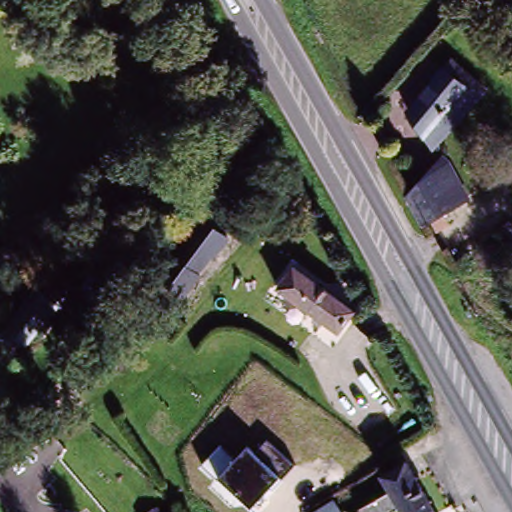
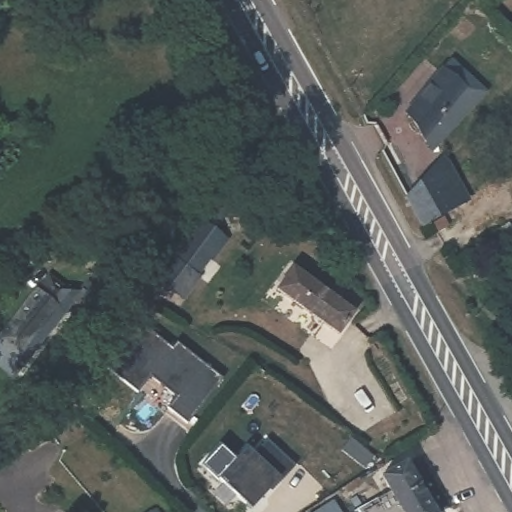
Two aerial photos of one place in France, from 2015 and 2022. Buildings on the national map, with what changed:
unchanged [(458,85),(463,78),(482,97),(432,150),(408,116),(451,67),(457,73),(452,78),(458,85)]
unchanged [(431,219),(414,191),(448,157),(473,194),(458,202),(466,214),(445,226),(438,215),(431,219)]
unchanged [(206,237),(223,251),(207,271),(196,263),(184,280),(194,287),(179,306),(156,287),(163,280),(167,283),(206,237)]
unchanged [(101,311),(80,294),(91,280),(98,285),(107,271),(123,283),(101,311)]
unchanged [(336,337),(279,290),(294,271),(350,317),(336,337)]
unchanged [(68,300),(17,360),(0,347),(0,343),(48,283),(68,300)]
unchanged [(219,448),(234,460),(246,447),(253,454),(266,441),(294,465),(280,476),(251,508),(201,466),(219,448)]
unchanged [(387,473),(412,458),(445,512),(366,512),(399,492),(387,473)]
unchanged [(339,512),(329,512),(336,507),(339,512)]

